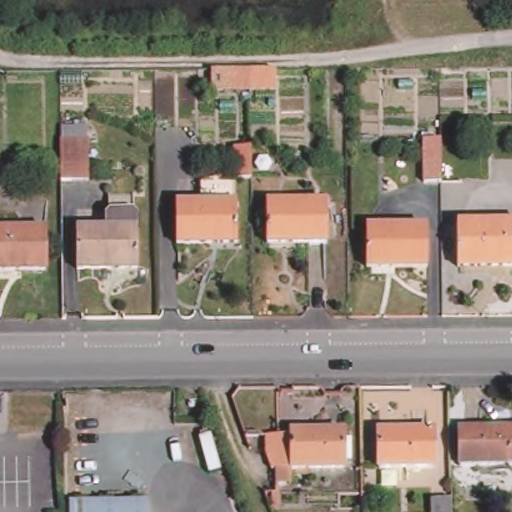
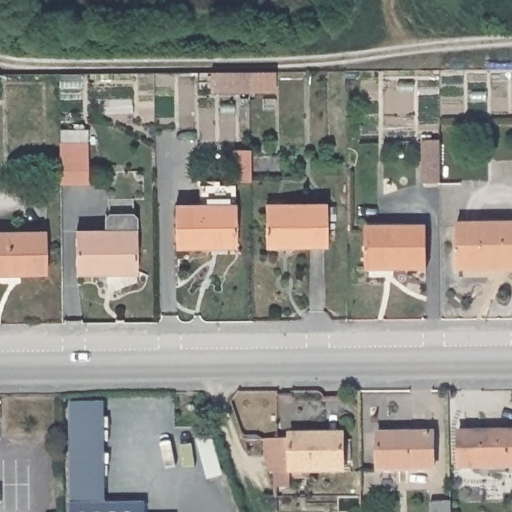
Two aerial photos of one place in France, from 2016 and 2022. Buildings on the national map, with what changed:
unchanged [(210,72),(249,72),(275,72),(275,92),(249,92),(210,92),(210,72)]
unchanged [(89,184),(60,185),(60,163),(59,130),(87,129),(89,184)]
unchanged [(440,185),(422,185),(422,142),(439,142),(440,185)]
unchanged [(199,189),(233,188),(233,155),(249,153),(250,187),(234,188),(235,252),(175,254),(175,209),(199,209),(199,189)]
unchanged [(326,247),(265,247),(265,204),(326,203),(326,247)]
unchanged [(75,231),(105,231),(104,218),(109,213),(132,212),(137,217),(137,273),(75,274),(75,231)]
unchanged [(512,225),(512,270),(456,271),(455,226),(512,225)]
unchanged [(425,229),(425,271),(365,271),(365,229),(425,229)]
unchanged [(0,232),(46,231),(47,275),(0,275),(0,232)]
new [(70,503),(70,402),(104,402),(105,502),(145,502),(145,512),(70,512),(70,503)]
unchanged [(512,431),(512,469),(459,470),(458,432),(512,431)]
unchanged [(433,432),(434,472),(377,472),(377,433),(433,432)]
unchanged [(273,489),(273,474),(270,474),(265,440),(289,440),(290,434),(343,433),(343,473),(288,473),(288,488),(273,489)]
unchanged [(451,512),(430,512),(430,502),(451,501),(451,512)]
demolished [(154,502),(153,512),(69,512),(69,503),(154,502)]

